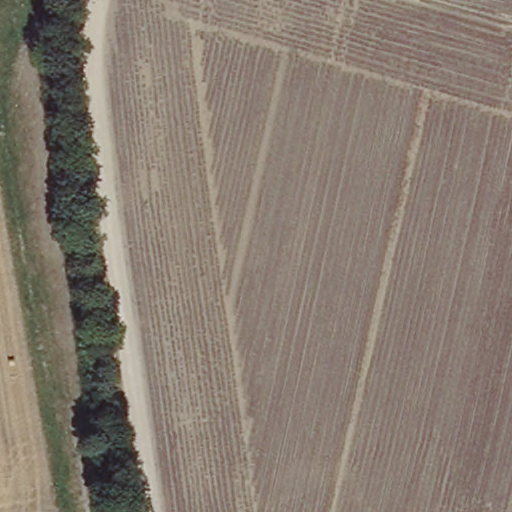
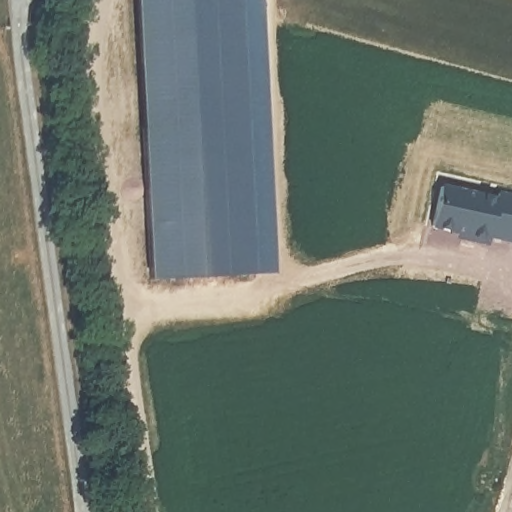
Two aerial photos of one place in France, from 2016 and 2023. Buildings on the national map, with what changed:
new [(267,129),(142,139),(136,0),(258,0),(267,129)]
new [(267,129),(276,279),(152,286),(142,139),(267,129)]
new [(494,195),(496,189),(512,192),(512,238),(487,233),(486,241),(462,236),(463,231),(430,224),(437,184),(494,195)]

